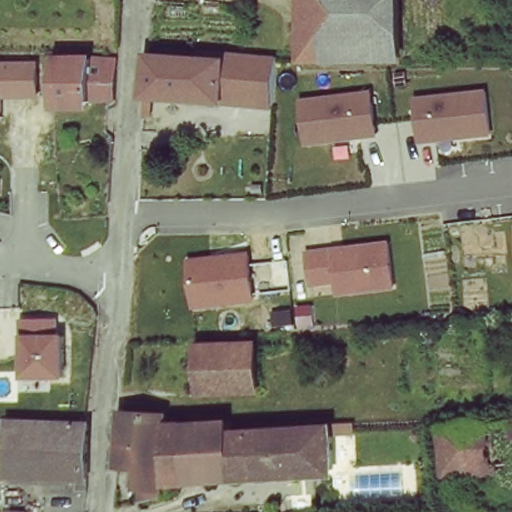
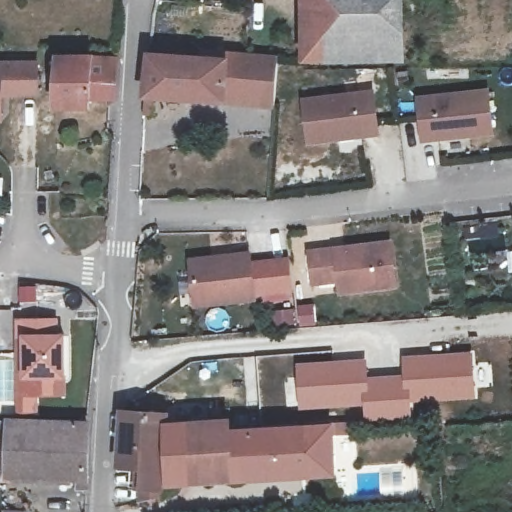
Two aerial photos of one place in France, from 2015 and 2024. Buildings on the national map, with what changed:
unchanged [(299,58),(299,0),(395,0),(395,57),(299,58)]
unchanged [(226,60),(227,50),(280,54),(275,111),(222,106),(224,100),(226,60)]
unchanged [(54,53),(111,54),(107,97),(53,96),(54,53)]
unchanged [(226,60),(224,100),(148,94),(151,54),(226,60)]
unchanged [(0,62),(41,62),(40,96),(1,98),(2,123),(0,123),(0,62)]
unchanged [(414,95),(488,85),(494,133),(422,142),(414,95)]
unchanged [(299,97),(374,88),(382,135),(306,148),(299,97)]
unchanged [(394,239),(401,287),(341,295),(340,286),(315,288),(306,251),(394,239)]
unchanged [(252,250),(259,303),(195,310),(187,258),(252,250)]
new [(315,302),(317,325),(272,328),(270,310),(315,302)]
unchanged [(56,316),(56,330),(61,330),(59,373),(15,372),(15,316),(56,316)]
demolished [(263,385),(205,386),(204,346),(262,345),(263,385)]
new [(410,402),(411,418),(365,420),(365,406),(300,408),(297,364),(365,359),(367,377),(404,374),(402,357),(472,352),(475,398),(410,402)]
unchanged [(163,408),(159,492),(133,500),(133,463),(113,463),(117,407),(163,408)]
unchanged [(329,463),(168,470),(168,419),(229,416),(229,426),(328,421),(329,463)]
unchanged [(13,475),(13,423),(91,424),(92,478),(13,475)]
unchanged [(450,427),(471,426),(512,423),(512,464),(473,467),(452,467),(450,427)]

